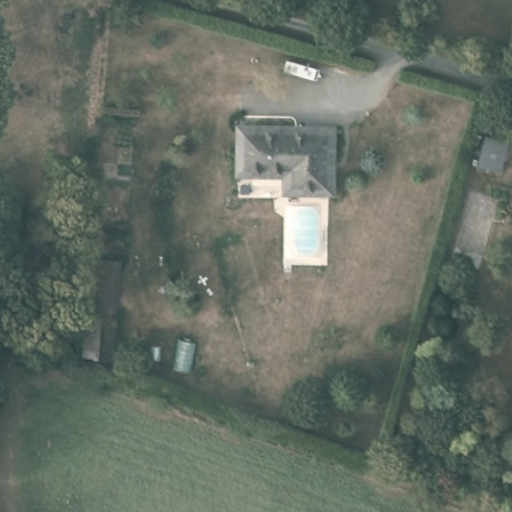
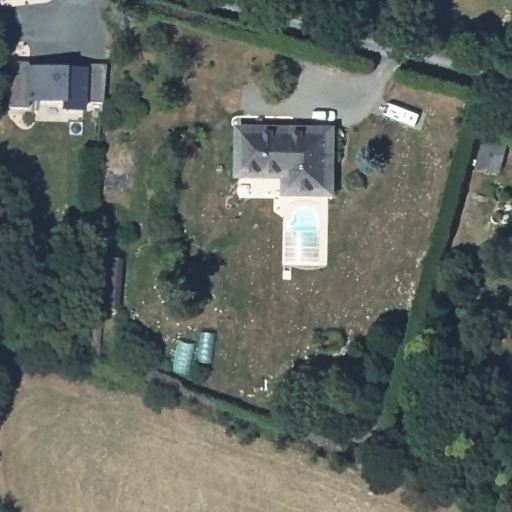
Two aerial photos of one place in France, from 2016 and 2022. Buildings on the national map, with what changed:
new [(26,63),(41,63),(41,70),(59,70),(59,64),(100,65),(96,103),(78,103),(77,110),(58,110),(58,102),(25,101),(24,109),(6,108),(7,62),(26,63)]
unchanged [(336,125),(335,190),(288,189),(288,172),(240,171),(242,123),(336,125)]
unchanged [(503,140),(497,167),(475,162),(481,135),(503,140)]
unchanged [(114,261),(109,311),(83,308),(88,257),(114,261)]

